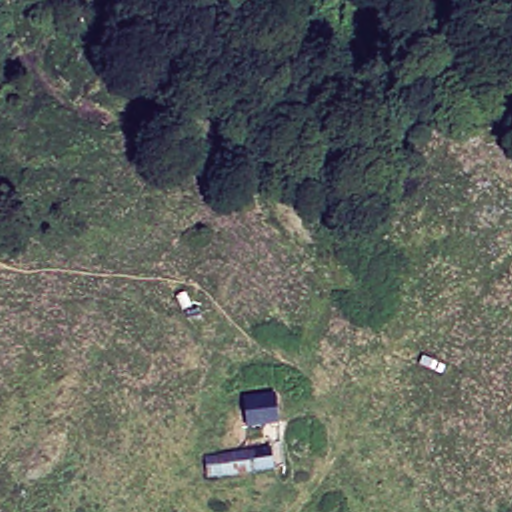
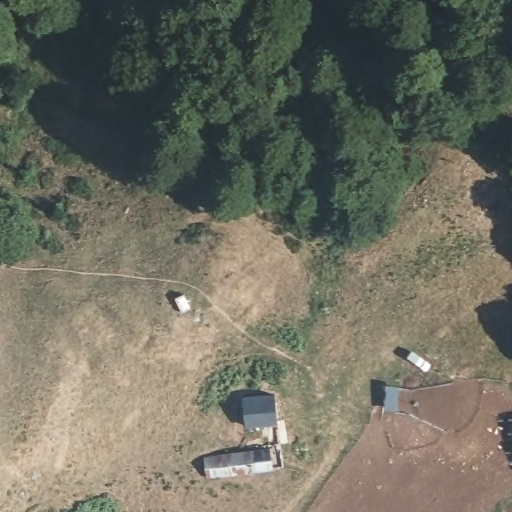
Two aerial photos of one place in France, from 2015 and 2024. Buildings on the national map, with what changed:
unchanged [(201,305),(182,311),(174,292),(192,285),(201,305)]
unchanged [(278,422),(247,425),(244,395),(275,392),(278,422)]
unchanged [(273,436),(278,463),(211,470),(209,447),(273,436)]

